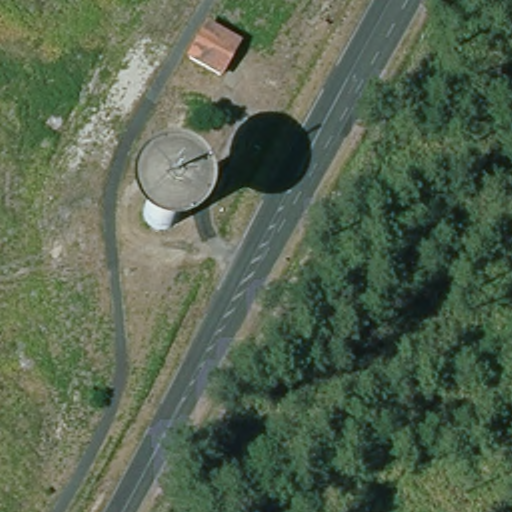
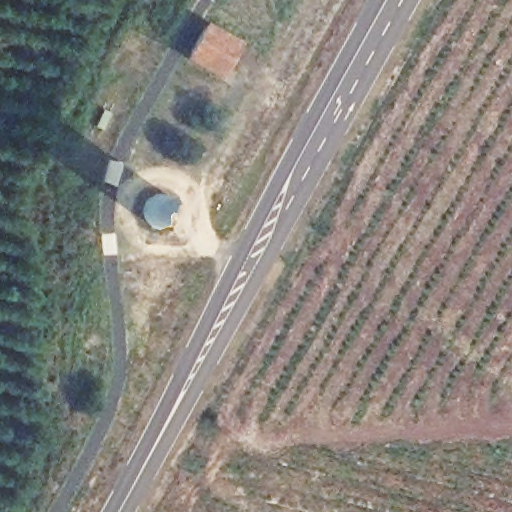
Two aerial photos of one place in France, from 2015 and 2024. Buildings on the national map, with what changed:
unchanged [(245,46),(231,73),(197,56),(210,28),(245,46)]

